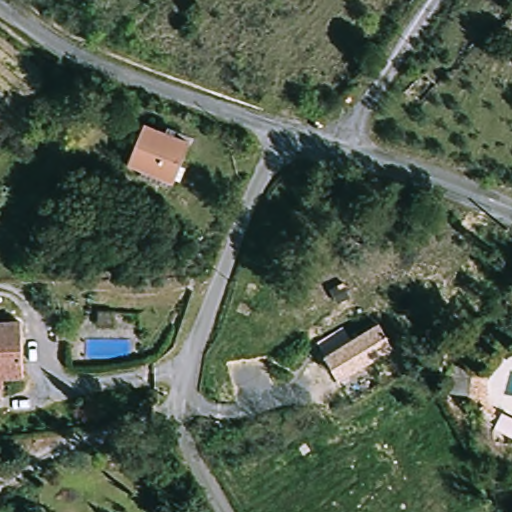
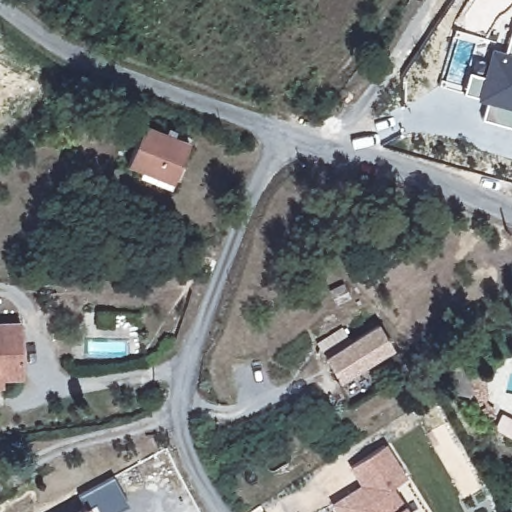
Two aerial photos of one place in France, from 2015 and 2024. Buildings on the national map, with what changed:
new [(480,117),(485,101),(475,99),(477,96),(462,92),(468,70),(482,75),(490,46),(503,49),(512,22),(512,127),(480,117)]
unchanged [(189,142),(174,186),(142,174),(144,169),(126,163),(140,124),(189,142)]
unchanged [(0,328),(20,326),(25,383),(7,384),(7,388),(0,389),(0,328)]
unchanged [(314,343),(313,343),(343,327),(352,342),(379,327),(393,353),(338,384),(314,343)]
unchanged [(479,374),(478,380),(488,381),(481,397),(475,395),(472,402),(477,405),(487,407),(485,415),(475,413),(475,411),(465,409),(467,403),(448,400),(452,382),(457,383),(458,375),(467,376),(467,372),(479,374)]
new [(385,445),(405,479),(390,488),(405,512),(362,512),(359,507),(372,499),(363,485),(351,466),(385,445)]
new [(89,510),(82,497),(116,478),(131,506),(120,512),(86,512),(89,510)]
new [(363,485),(372,499),(359,507),(362,512),(338,512),(333,503),(363,485)]

